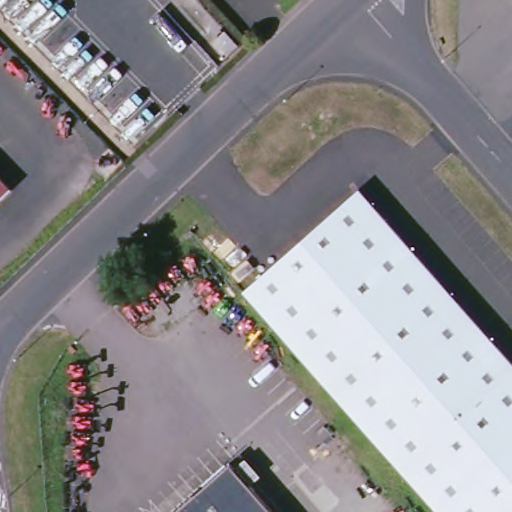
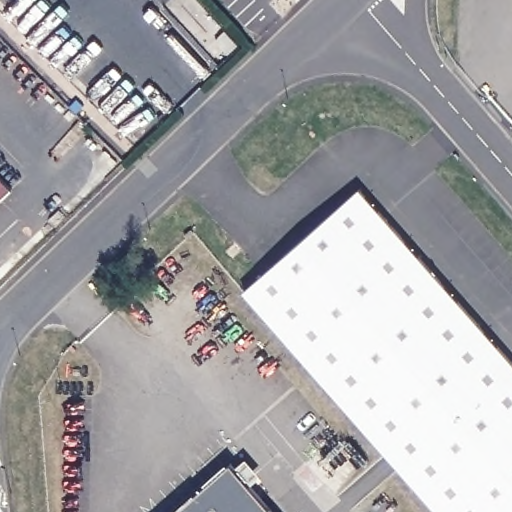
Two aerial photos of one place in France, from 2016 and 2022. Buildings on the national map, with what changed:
unchanged [(11,187),(0,197),(0,175),(11,187)]
unchanged [(512,360),(512,512),(442,512),(248,292),(363,191),(512,360)]
unchanged [(233,463),(237,468),(251,485),(275,512),(177,512),(183,506),(233,463)]

